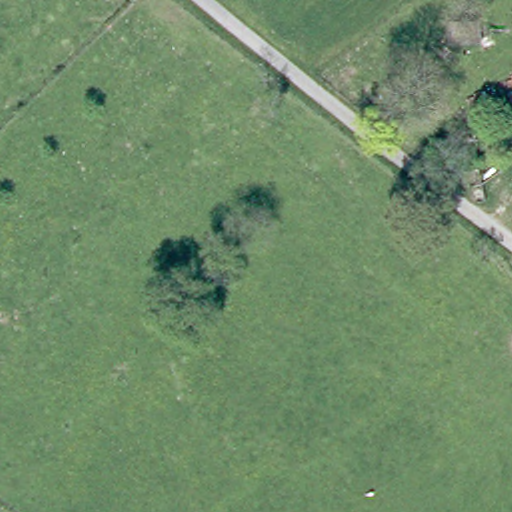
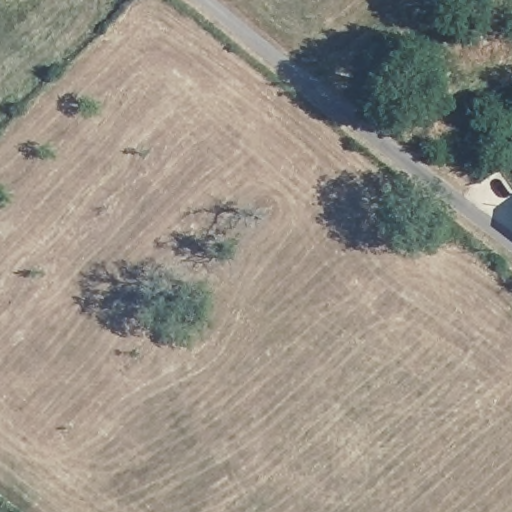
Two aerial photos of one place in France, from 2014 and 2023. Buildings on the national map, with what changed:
unchanged [(481,41),(451,43),(449,23),(480,21),(481,41)]

